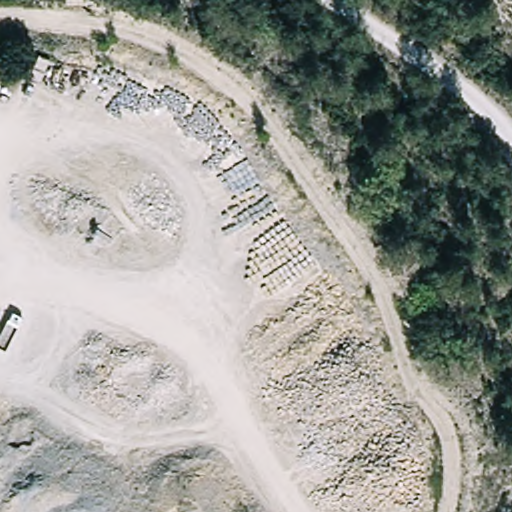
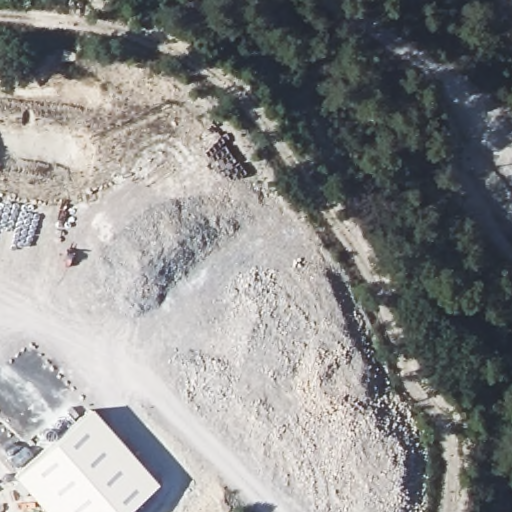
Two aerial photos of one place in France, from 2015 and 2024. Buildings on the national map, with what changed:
new [(158,483),(126,512),(44,512),(12,477),(90,407),(158,483)]

